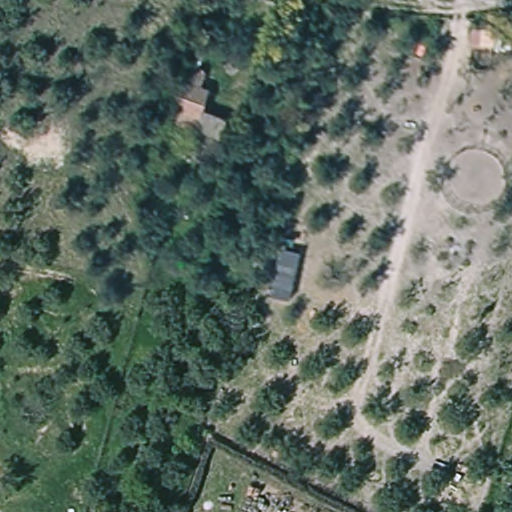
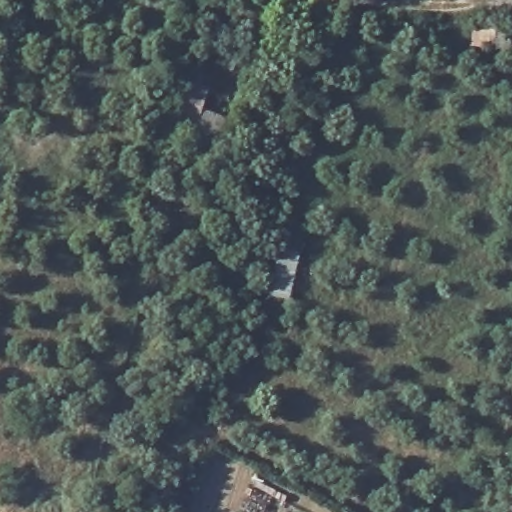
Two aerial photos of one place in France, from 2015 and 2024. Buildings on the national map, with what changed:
unchanged [(171,140),(194,78),(210,83),(201,106),(210,110),(201,138),(186,133),(183,144),(171,140)]

